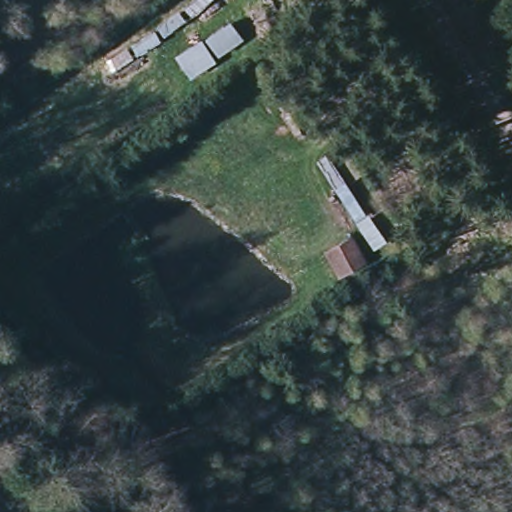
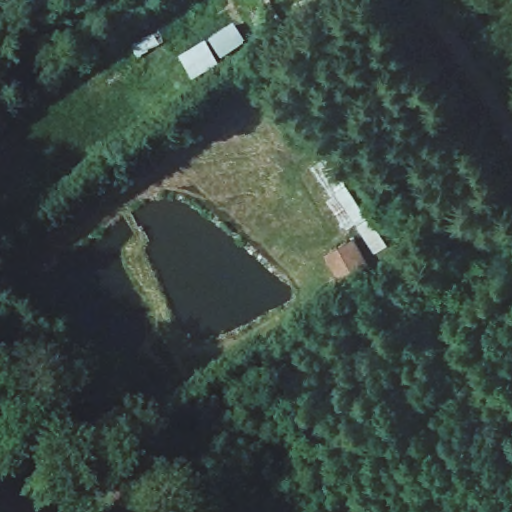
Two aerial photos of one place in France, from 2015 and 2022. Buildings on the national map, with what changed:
unchanged [(353,235),(370,264),(342,280),(323,253),(353,235)]

